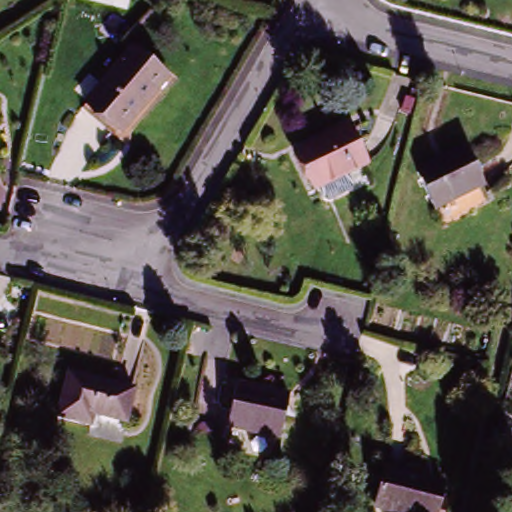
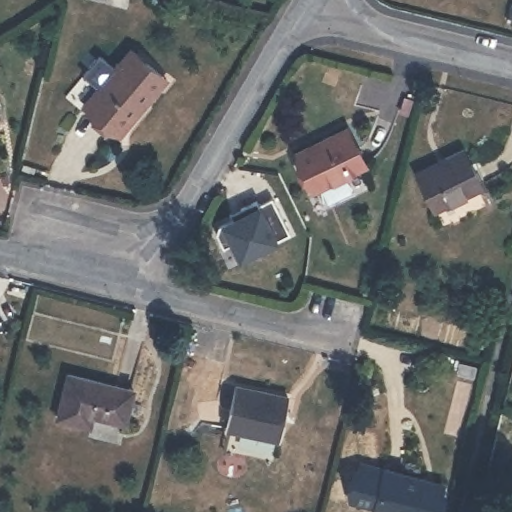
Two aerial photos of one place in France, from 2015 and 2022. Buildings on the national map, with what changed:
unchanged [(115,137),(80,108),(127,52),(158,78),(163,82),(135,115),(115,137)]
unchanged [(290,155),(342,133),(358,170),(307,193),(290,155)]
unchanged [(462,154),(480,192),(435,214),(417,179),(445,165),(444,164),(462,154)]
new [(227,219),(225,214),(235,209),(252,200),(254,204),(267,199),(285,234),(235,259),(227,244),(219,249),(211,234),(214,227),(227,219)]
unchanged [(132,390),(125,422),(93,414),(90,426),(58,418),(68,374),(132,390)]
unchanged [(287,405),(276,445),(225,433),(235,392),(287,405)]
unchanged [(375,511),(384,473),(442,487),(438,502),(445,503),(444,512),(381,512),(375,511)]

